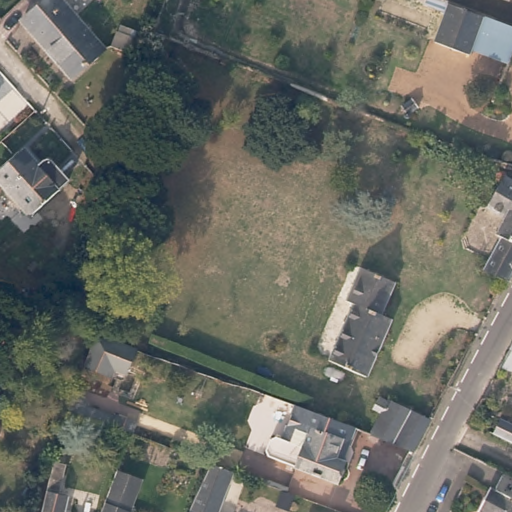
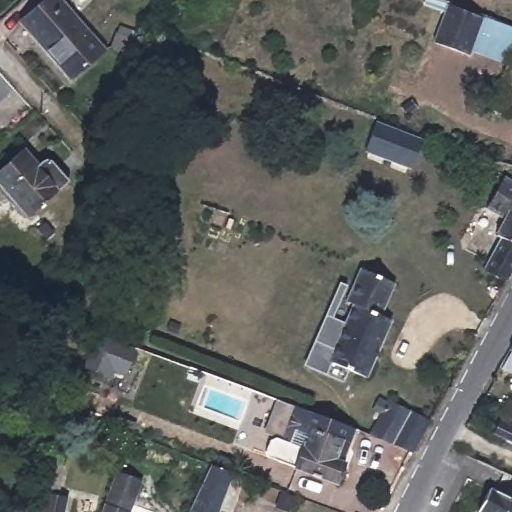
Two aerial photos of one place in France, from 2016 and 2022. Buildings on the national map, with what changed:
unchanged [(71,75),(21,20),(42,0),(62,0),(102,45),(71,75)]
unchanged [(466,50),(463,56),(429,43),(443,5),(460,11),(512,30),(512,46),(505,65),(466,50)]
unchanged [(140,41),(135,55),(111,45),(116,31),(140,41)]
new [(413,167),(367,150),(378,121),(424,139),(413,167)]
unchanged [(38,171),(47,163),(64,182),(26,213),(0,185),(0,165),(18,149),(38,171)]
unchanged [(487,272),(505,238),(501,235),(510,219),(492,209),(510,180),(512,181),(512,276),(508,285),(487,272)]
unchanged [(392,282),(379,315),(391,320),(366,377),(327,360),(351,304),(343,300),(357,267),(392,282)]
unchanged [(34,317),(31,329),(11,324),(14,313),(34,317)]
unchanged [(100,331),(128,340),(132,342),(125,361),(105,355),(102,365),(83,359),(93,328),(100,331)]
unchanged [(507,346),(512,335),(512,350),(505,348),(507,346)]
unchanged [(382,414),(373,410),(378,398),(387,402),(387,400),(431,419),(420,438),(414,450),(374,434),(382,414)]
unchanged [(338,483),(272,456),(269,450),(273,438),(280,436),(285,438),(298,405),(374,434),(368,449),(355,443),(347,462),(338,483)]
unchanged [(42,505),(54,459),(64,462),(56,491),(69,494),(65,512),(40,512),(42,505)]
unchanged [(233,470),(217,512),(196,512),(189,510),(211,462),(233,470)]
unchanged [(116,472),(138,481),(128,512),(101,512),(104,505),(116,472)]
unchanged [(496,488),(512,496),(512,512),(483,512),(478,509),(489,487),(495,490),(496,488)]

